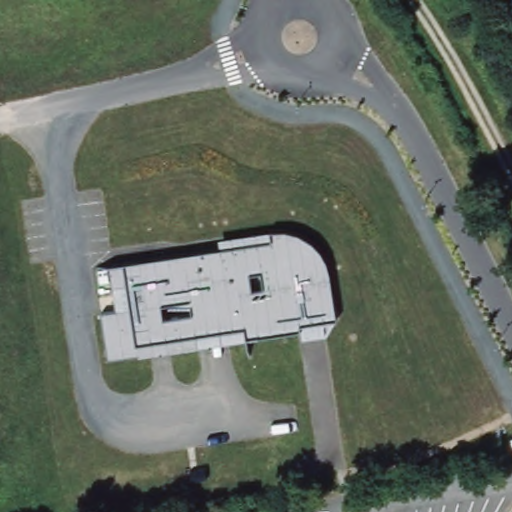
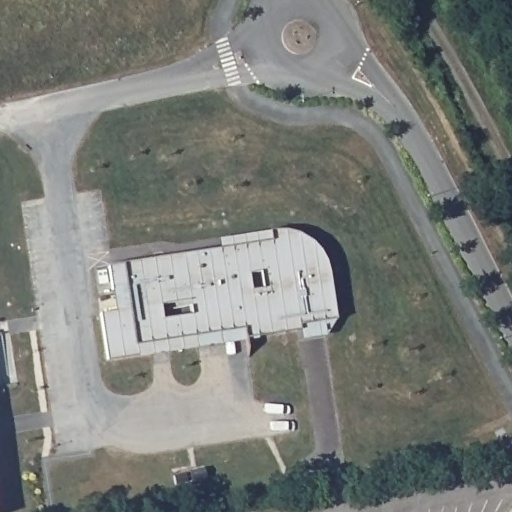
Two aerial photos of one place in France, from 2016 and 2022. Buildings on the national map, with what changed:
unchanged [(221,239),(276,230),(290,230),(303,236),(318,249),(327,260),(330,270),(338,322),(338,335),(303,340),(303,330),(262,333),(261,340),(110,361),(105,314),(116,312),(109,266),(222,249),(221,239)]

